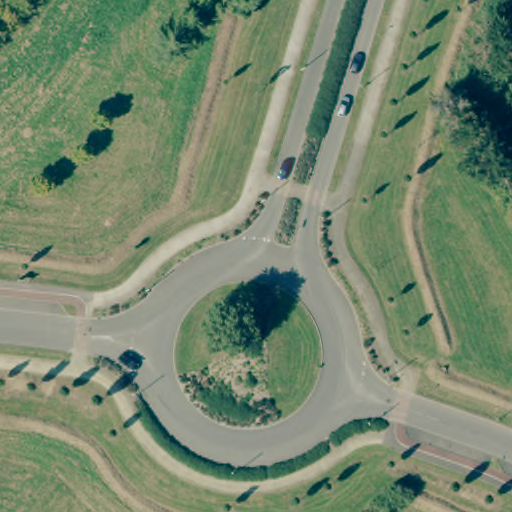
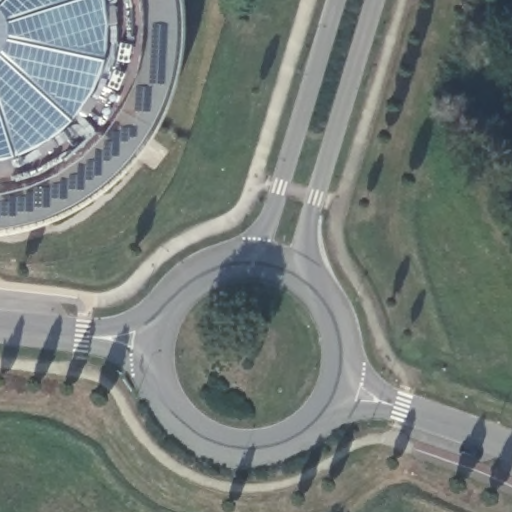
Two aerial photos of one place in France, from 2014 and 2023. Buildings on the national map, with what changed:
new [(174,85),(146,138),(120,170),(81,200),(37,219),(0,227),(0,0),(180,0),(182,44),(174,85)]

